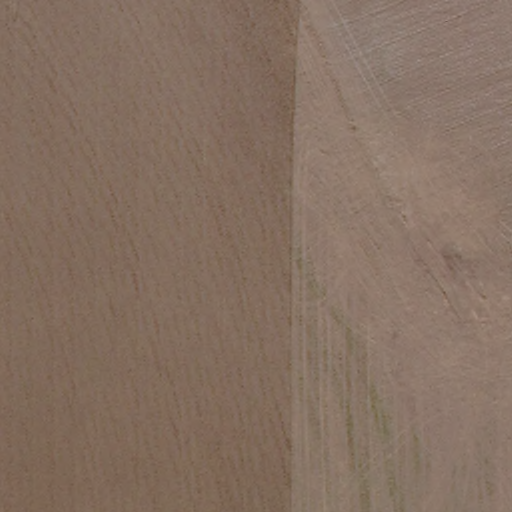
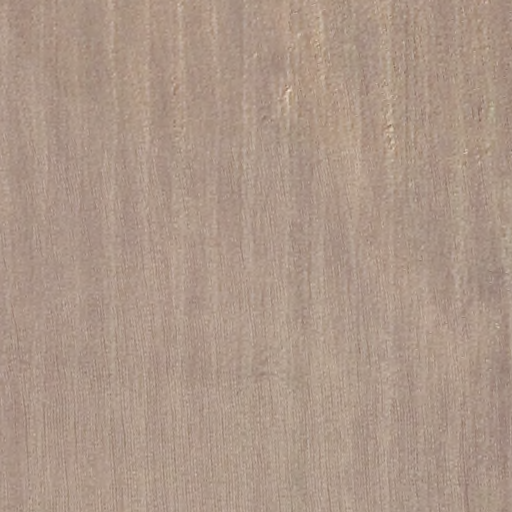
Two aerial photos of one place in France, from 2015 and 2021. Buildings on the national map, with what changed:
[]

